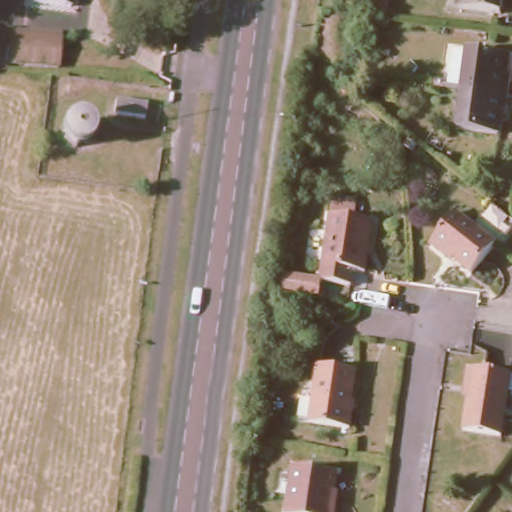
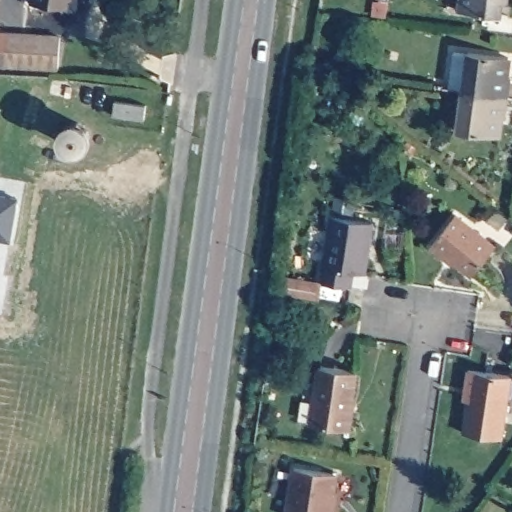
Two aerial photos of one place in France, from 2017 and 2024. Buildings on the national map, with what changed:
unchanged [(467,11),(468,0),(510,0),(508,17),(467,11)]
unchanged [(0,30),(62,34),(60,76),(50,76),(0,73),(0,30)]
unchanged [(461,50),(475,51),(475,49),(512,54),(512,98),(470,91),(456,89),(461,50)]
unchanged [(509,120),(506,138),(465,132),(470,91),(512,98),(512,120),(509,120)]
unchanged [(149,106),(147,121),(114,117),(115,102),(149,106)]
new [(9,240),(0,239),(0,196),(15,198),(9,240)]
unchanged [(497,239),(475,269),(450,251),(447,254),(432,242),(457,209),(497,239)]
unchanged [(362,271),(350,270),(349,284),(319,281),(327,214),(369,219),(362,271)]
unchanged [(346,408),(350,408),(347,427),(307,422),(314,366),(350,370),(346,408)]
unchanged [(497,434),(460,429),(465,386),(460,385),(462,367),(506,373),(497,434)]
unchanged [(329,499),(332,499),(330,512),(297,512),(284,510),(290,460),(334,467),(329,499)]

